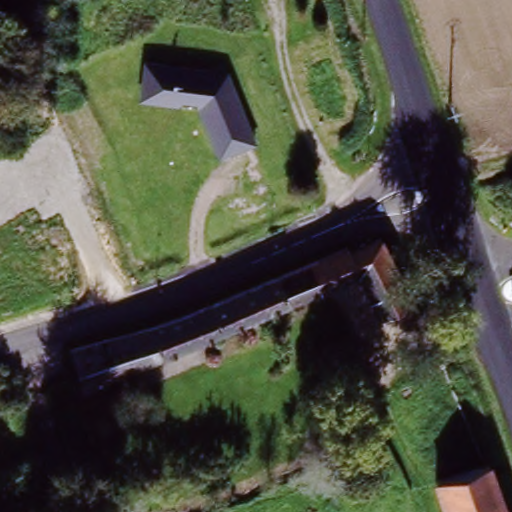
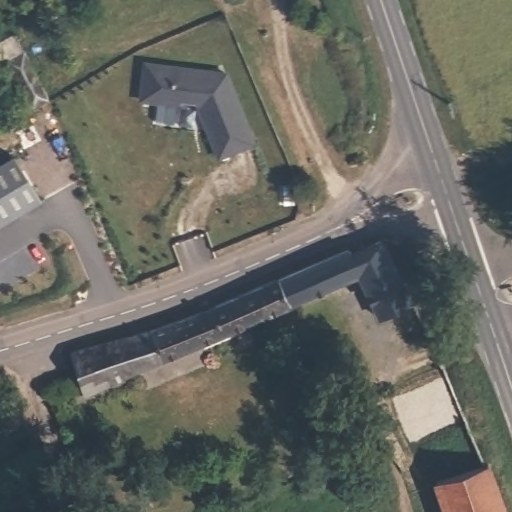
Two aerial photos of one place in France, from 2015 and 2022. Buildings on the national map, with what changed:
unchanged [(30,118),(2,69),(25,56),(50,105),(30,118)]
unchanged [(222,74),(252,145),(217,159),(194,109),(140,105),(145,63),(222,74)]
new [(19,158),(45,202),(0,229),(0,170),(19,158)]
unchanged [(185,315),(345,248),(350,253),(380,237),(420,304),(385,324),(361,285),(229,345),(90,387),(74,354),(185,315)]
unchanged [(438,483),(487,464),(503,512),(448,512),(438,483)]

